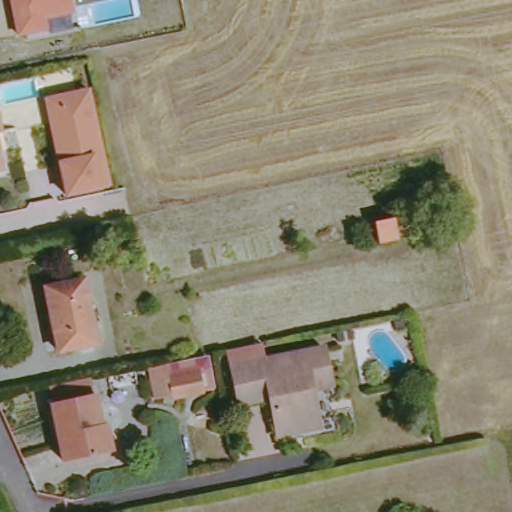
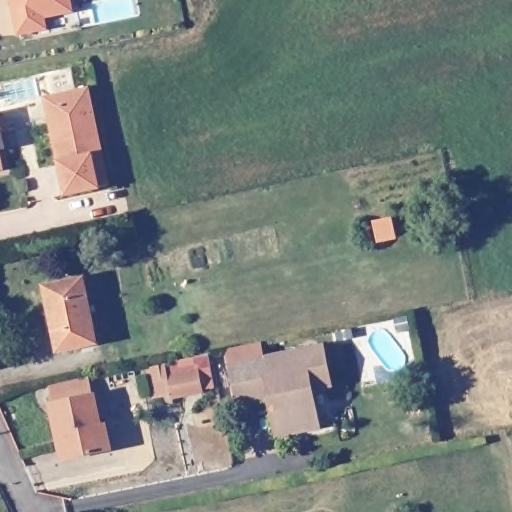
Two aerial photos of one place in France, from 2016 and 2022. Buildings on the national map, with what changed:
unchanged [(48,21),(50,32),(18,39),(10,0),(74,0),(75,16),(48,21)]
unchanged [(54,120),(50,105),(61,102),(93,96),(110,177),(67,186),(54,120)]
unchanged [(0,115),(1,115),(7,134),(3,135),(8,154),(13,173),(0,176),(0,115)]
unchanged [(372,250),(370,229),(392,227),(395,247),(372,250)]
unchanged [(65,351),(53,287),(89,282),(101,345),(65,351)]
unchanged [(337,388),(316,392),(323,428),(283,437),(276,402),(244,408),(236,368),(327,350),(337,388)]
unchanged [(176,401),(177,396),(159,401),(155,370),(173,366),(176,375),(208,367),(213,397),(176,401)]
unchanged [(112,417),(117,443),(70,452),(58,396),(100,387),(105,418),(112,417)]

